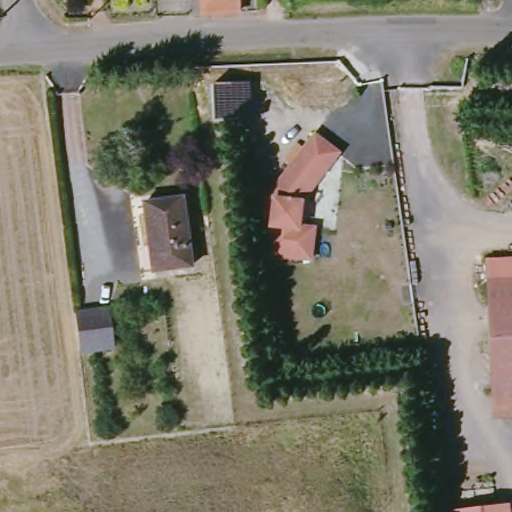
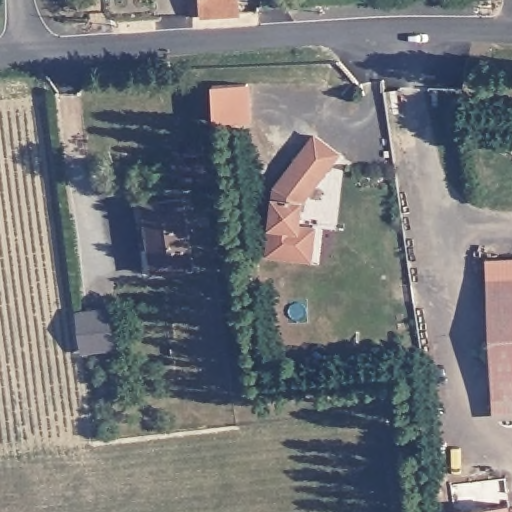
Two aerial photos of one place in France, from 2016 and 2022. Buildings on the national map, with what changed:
unchanged [(185,15),(184,4),(188,0),(232,0),(234,13),(185,15)]
unchanged [(319,152),(291,207),(292,231),(308,230),(310,262),(266,265),(263,197),(292,139),(319,152)]
unchanged [(191,275),(152,278),(142,195),(181,190),(191,275)]
unchanged [(481,257),(512,256),(512,275),(483,277),(481,257)]
unchanged [(512,396),(490,397),(483,277),(512,275),(512,396)]
unchanged [(75,315),(107,310),(112,352),(80,355),(75,315)]
unchanged [(512,416),(490,416),(490,397),(512,396),(512,416)]
unchanged [(507,512),(480,512),(507,508),(507,512)]

